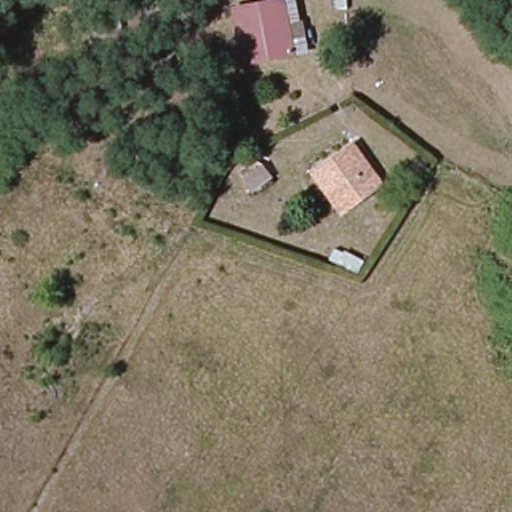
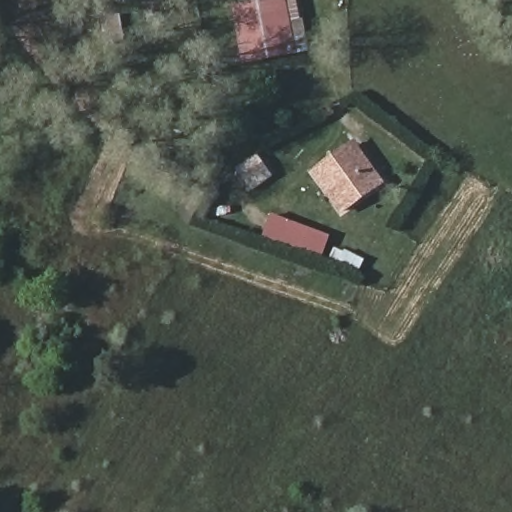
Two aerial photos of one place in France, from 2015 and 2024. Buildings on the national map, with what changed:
unchanged [(240,66),(230,6),(268,0),(281,0),(291,59),(240,66)]
unchanged [(291,59),(281,0),(300,0),(309,55),(291,59)]
unchanged [(315,175),(356,145),(377,170),(389,185),(347,216),(337,201),(315,175)]
new [(330,235),(323,258),(263,238),(270,215),(330,235)]

